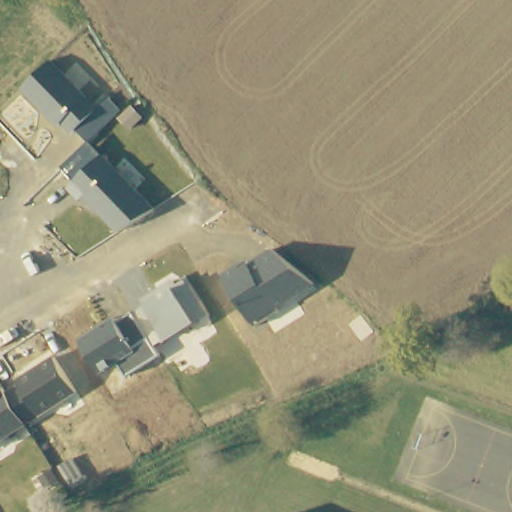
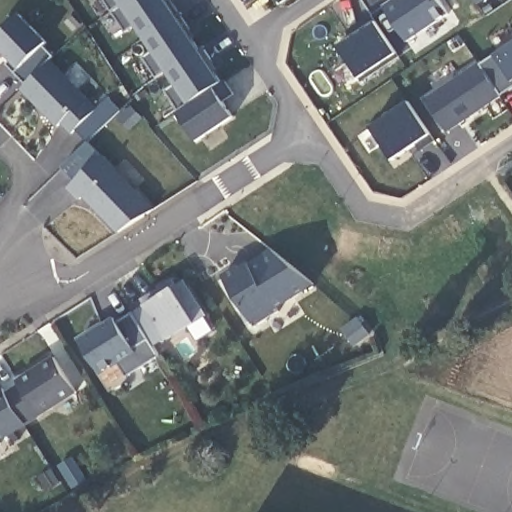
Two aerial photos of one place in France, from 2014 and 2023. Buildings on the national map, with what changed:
new [(195,142),(176,113),(189,104),(119,0),(166,0),(221,83),(224,81),(232,94),(221,102),(232,117),(195,142)]
new [(383,7),(392,0),(438,0),(447,14),(407,41),(383,7)]
new [(477,4),(475,0),(483,0),(477,4)]
new [(20,13),(47,41),(43,46),(52,56),(47,60),(50,63),(27,85),(6,64),(11,59),(0,47),(0,31),(20,13)]
new [(359,78),(337,44),(375,22),(395,54),(359,78)]
new [(423,99),(479,64),(512,41),(512,88),(500,96),(446,133),(423,99)]
unchanged [(64,169),(87,142),(75,129),(72,134),(61,124),(59,127),(22,89),(50,63),(99,110),(111,100),(122,111),(92,144),(155,210),(120,235),(64,169)]
new [(391,160),(370,129),(407,103),(428,135),(391,160)]
unchanged [(224,277),(248,262),(250,266),(272,250),(315,287),(256,325),(224,277)]
unchanged [(119,364),(101,375),(80,343),(116,320),(119,325),(146,308),(141,301),(174,281),(177,286),(184,280),(206,316),(195,324),(155,350),(160,356),(129,377),(119,364)]
unchanged [(4,391),(8,398),(24,388),(17,379),(55,356),(79,393),(25,427),(0,444),(0,394),(4,391)]

